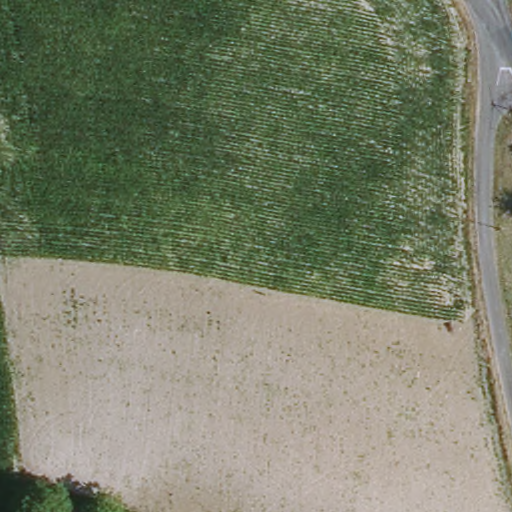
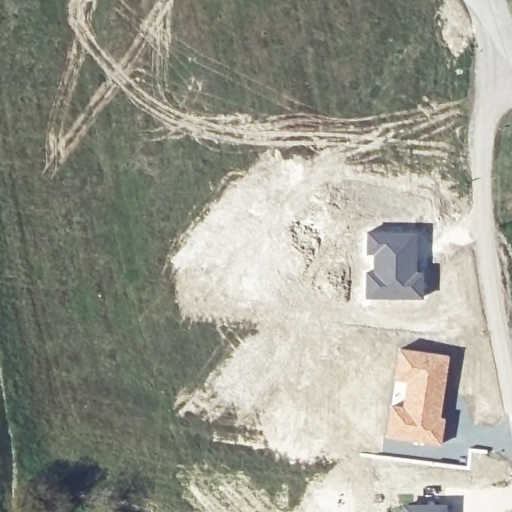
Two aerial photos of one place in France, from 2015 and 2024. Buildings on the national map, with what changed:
new [(366,230),(418,230),(418,270),(424,270),(424,300),(364,298),(366,230)]
new [(399,347),(450,355),(441,416),(446,417),(441,447),(384,437),(399,347)]
new [(399,503),(448,501),(448,512),(399,512),(399,503)]

